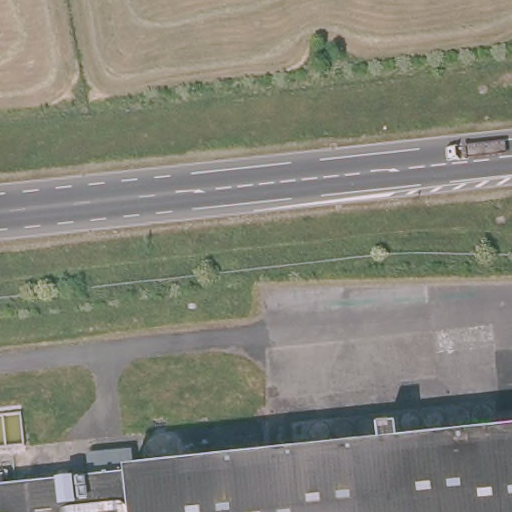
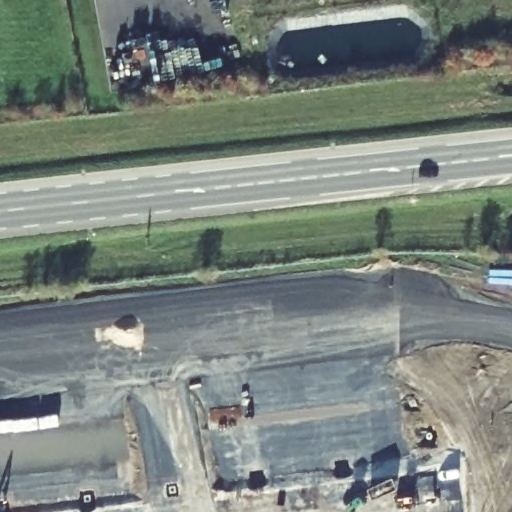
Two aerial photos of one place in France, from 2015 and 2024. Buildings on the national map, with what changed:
demolished [(512,435),(512,512),(0,512),(0,487),(127,475),(512,435)]

